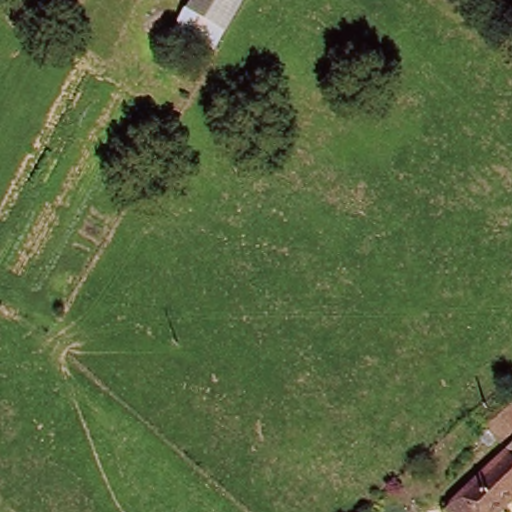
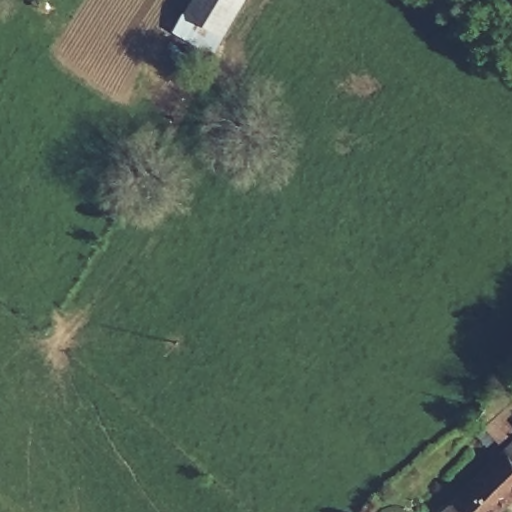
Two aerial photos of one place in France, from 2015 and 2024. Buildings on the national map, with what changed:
unchanged [(210,53),(174,30),(194,0),(195,0),(230,20),(210,53)]
unchanged [(242,0),(230,20),(195,0),(242,0)]
unchanged [(496,434),(488,441),(478,430),(485,421),(512,399),(512,432),(502,440),(496,434)]
unchanged [(512,504),(504,512),(449,512),(448,512),(462,498),(512,447),(512,504)]

